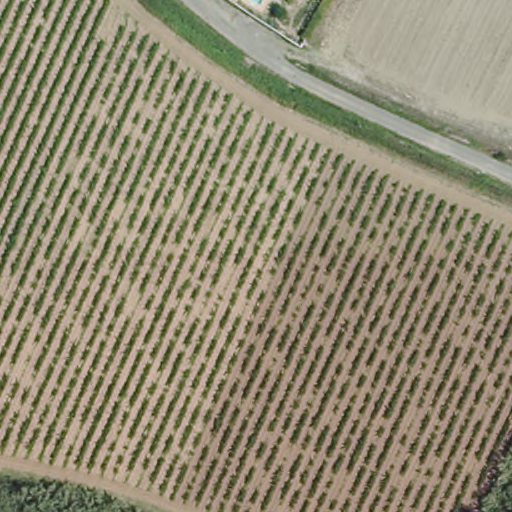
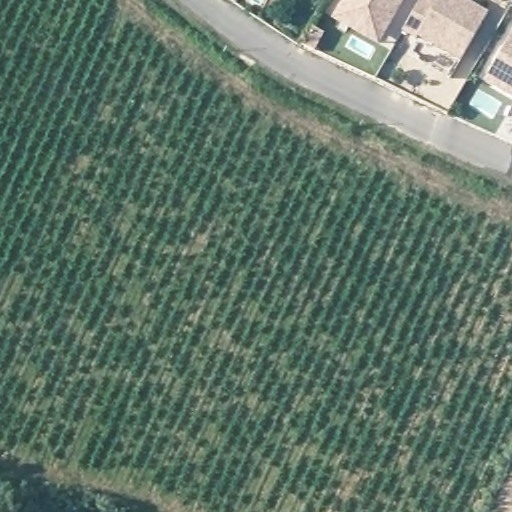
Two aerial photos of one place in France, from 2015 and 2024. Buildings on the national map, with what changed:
new [(404,0),(392,21),(382,39),(338,14),(342,7),(346,0),(404,0)]
new [(479,0),(494,9),(465,58),(422,34),(420,36),(407,28),(423,0),(479,0)]
unchanged [(512,33),(512,96),(487,83),(512,33)]

